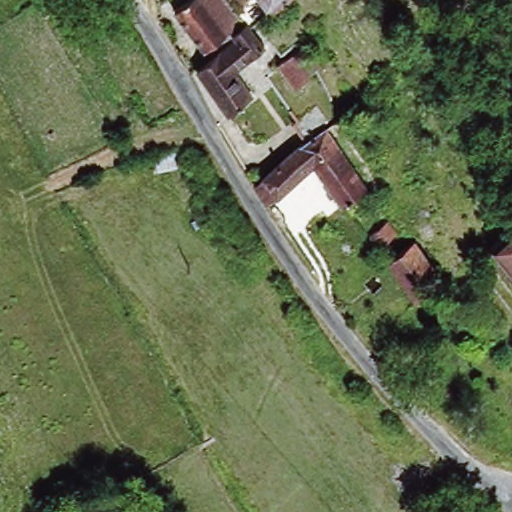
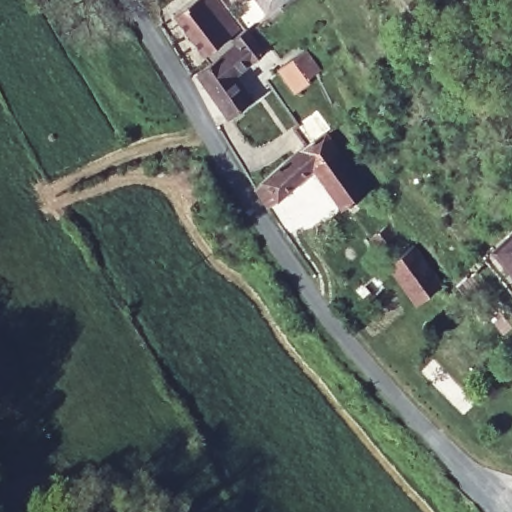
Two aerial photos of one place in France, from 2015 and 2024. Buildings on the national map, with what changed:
unchanged [(168,15),(192,0),(218,0),(239,29),(222,41),(228,50),(203,65),(168,15)]
unchanged [(261,8),(255,0),(272,0),(261,8)]
unchanged [(251,97),(223,116),(192,73),(203,65),(228,50),(237,45),(234,40),(248,32),(264,52),(232,74),(251,97)]
unchanged [(306,50),(315,44),(332,66),(322,72),(300,85),(286,65),(289,62),(306,50)]
unchanged [(344,205),(316,170),(269,202),(256,184),(318,139),(324,135),(366,189),(344,205)]
unchanged [(374,227),(394,214),(404,225),(384,240),(374,227)]
unchanged [(512,229),(512,277),(491,249),(512,229)]
unchanged [(407,247),(440,288),(415,308),(381,265),(407,247)]

